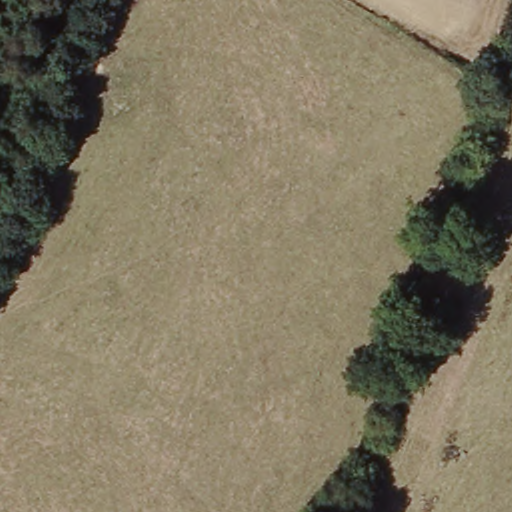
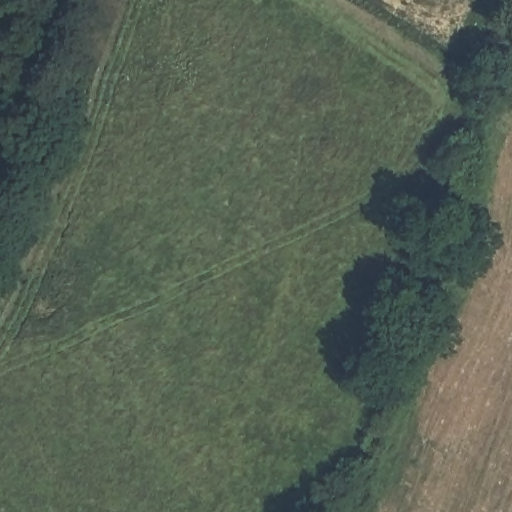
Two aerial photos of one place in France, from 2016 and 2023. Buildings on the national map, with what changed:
[]

